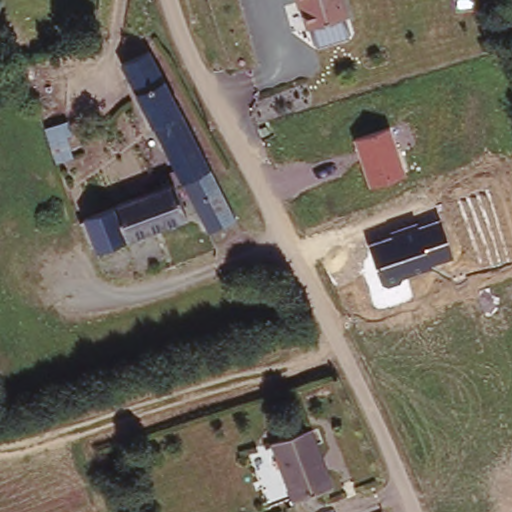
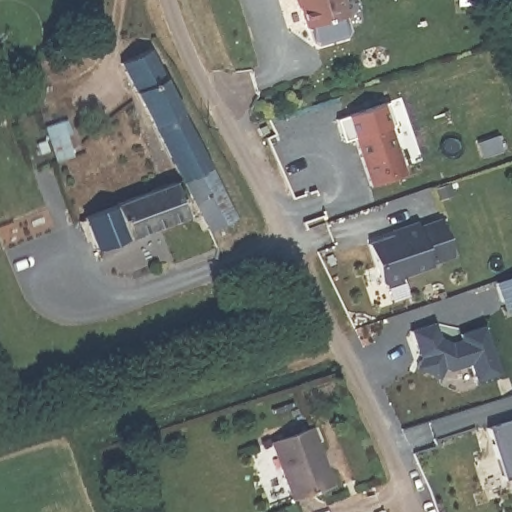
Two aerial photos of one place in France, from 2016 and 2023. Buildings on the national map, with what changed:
unchanged [(338,14),(299,27),(291,0),(334,0),(338,14)]
unchanged [(126,62),(152,48),(214,167),(187,179),(126,62)]
unchanged [(371,188),(353,141),(391,126),(407,174),(371,188)]
unchanged [(240,216),(212,230),(187,179),(214,167),(240,216)]
unchanged [(191,216),(100,250),(88,217),(121,204),(120,201),(177,181),(191,216)]
unchanged [(432,264),(433,268),(383,284),(370,246),(393,237),(392,232),(418,223),(421,229),(439,220),(453,255),(432,264)]
new [(512,278),(512,311),(507,313),(495,284),(512,278)]
new [(442,337),(454,341),(461,338),(460,333),(485,326),(500,373),(475,382),(470,365),(448,371),(445,370),(442,379),(417,368),(421,358),(408,330),(434,321),(442,337)]
new [(490,429),(512,421),(512,477),(506,480),(490,429)]
unchanged [(307,424),(328,478),(286,495),(266,438),(307,424)]

